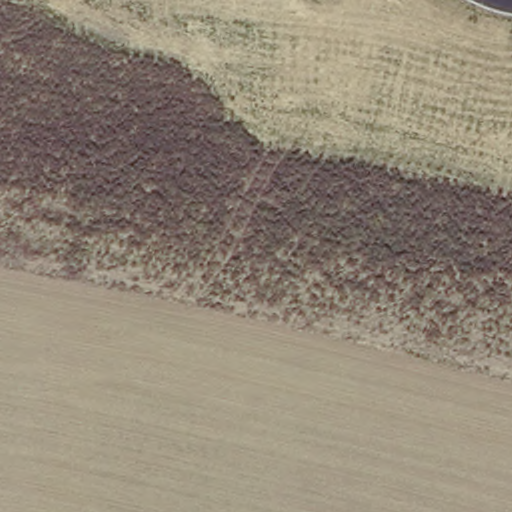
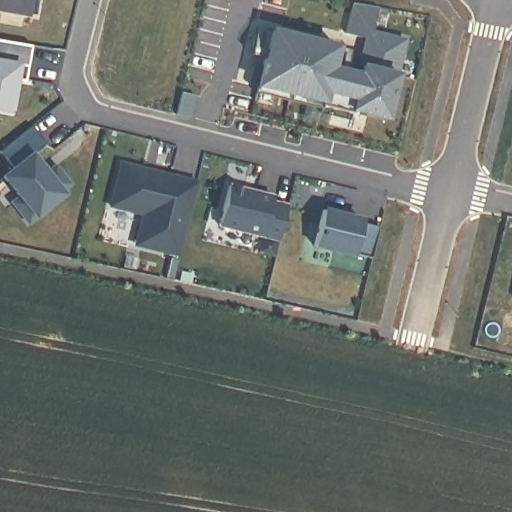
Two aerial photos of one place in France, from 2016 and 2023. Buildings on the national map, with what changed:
new [(39,19),(0,12),(0,0),(42,0),(39,19)]
new [(261,27),(345,45),(340,72),(357,78),(366,32),(342,27),(347,0),(374,0),(370,24),(403,30),(387,116),(251,92),(261,27)]
new [(32,65),(30,80),(20,78),(15,109),(0,106),(0,39),(35,45),(32,65)]
new [(37,128),(51,145),(37,156),(52,175),(60,168),(75,186),(51,204),(54,208),(34,224),(17,204),(25,198),(8,178),(19,170),(5,153),(37,128)]
new [(46,168),(50,165),(55,172),(52,175),(46,168)]
new [(184,256),(141,246),(148,215),(115,207),(125,165),(147,170),(146,174),(156,176),(157,173),(202,183),(184,256)]
new [(277,197),(275,203),(291,206),(283,241),(222,226),(232,186),(277,197)]
new [(51,204),(66,192),(69,196),(54,208),(51,204)]
new [(344,214),(343,216),(366,221),(365,223),(383,227),(375,259),(358,254),(358,256),(318,246),(326,210),(344,214)]

